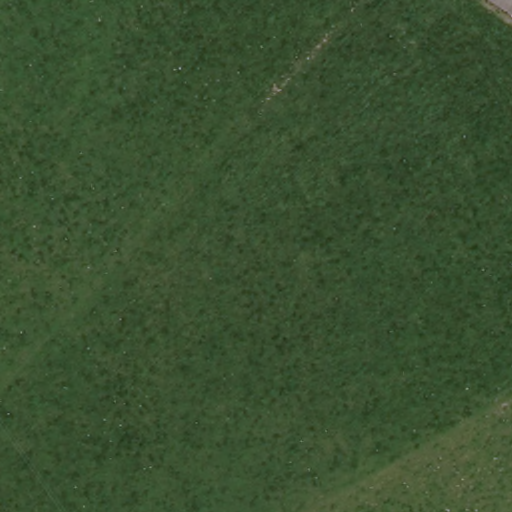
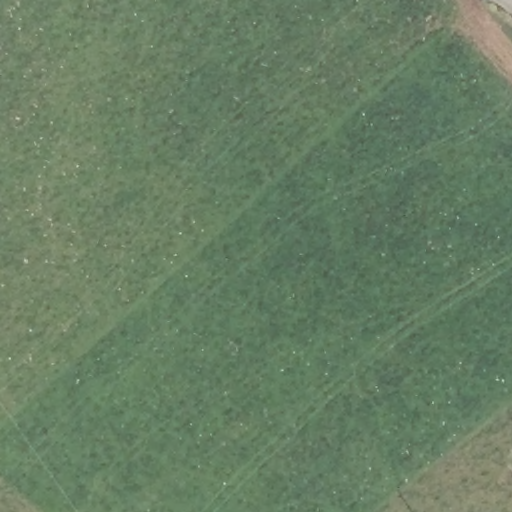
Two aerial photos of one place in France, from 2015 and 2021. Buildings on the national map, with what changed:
unchanged [(492,0),(512,0),(512,14),(491,1),(492,0)]

